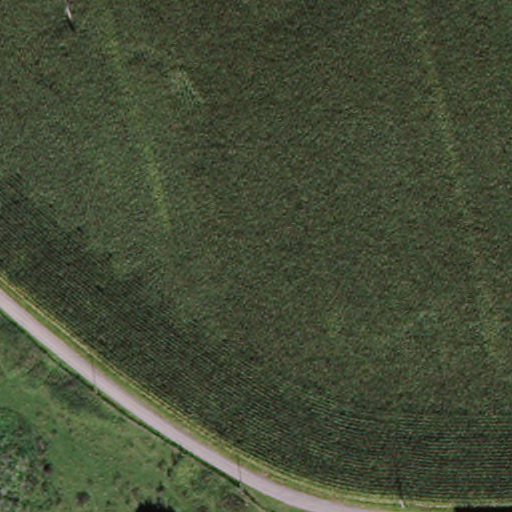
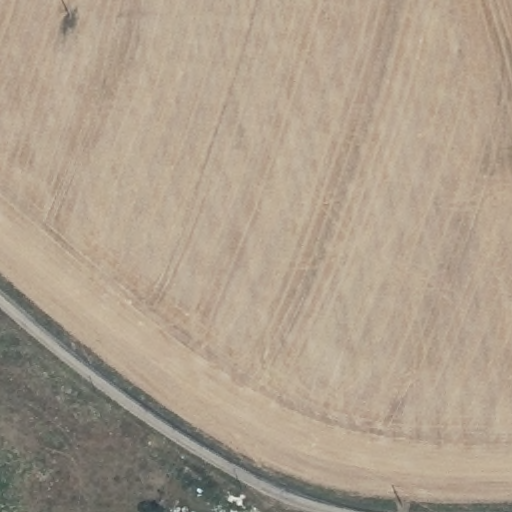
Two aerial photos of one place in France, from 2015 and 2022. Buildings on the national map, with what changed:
[]

